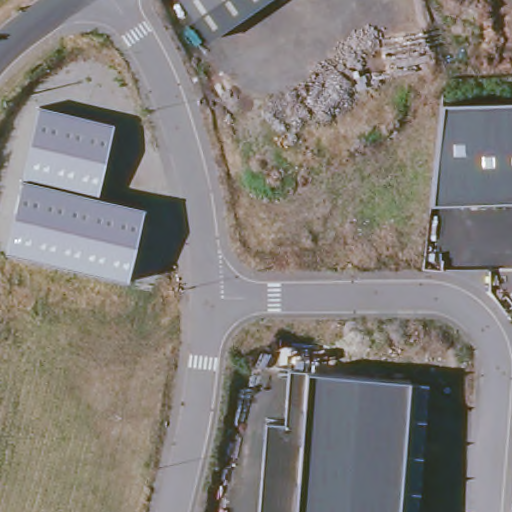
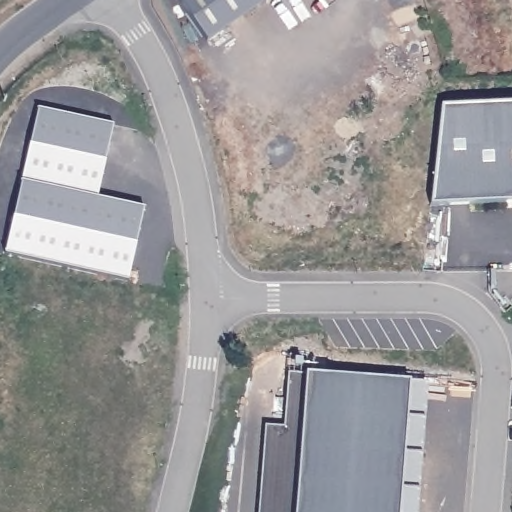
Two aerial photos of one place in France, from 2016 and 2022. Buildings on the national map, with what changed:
unchanged [(178,0),(263,0),(205,40),(178,0)]
unchanged [(440,102),(512,100),(512,200),(428,203),(440,102)]
unchanged [(40,107),(114,125),(97,197),(144,209),(128,281),(6,253),(40,107)]
unchanged [(282,423),(286,369),(304,370),(408,380),(396,512),(258,512),(266,422),(282,423)]

